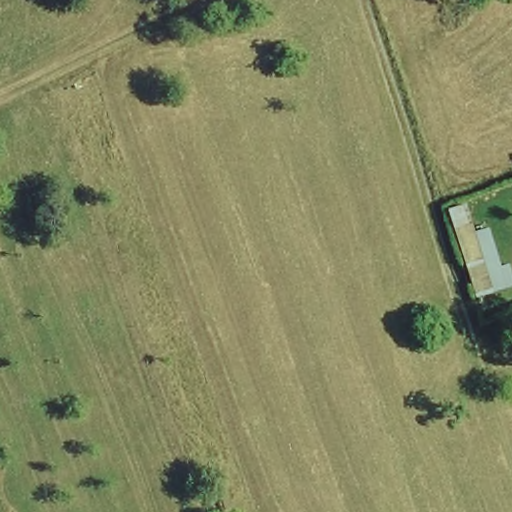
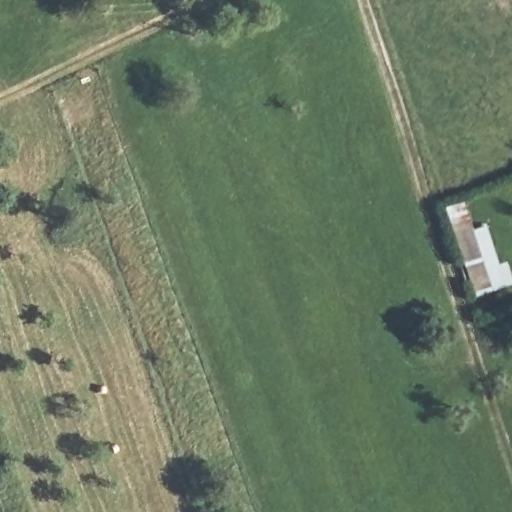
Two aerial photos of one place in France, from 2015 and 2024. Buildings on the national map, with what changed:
unchanged [(450,209),(470,204),(476,231),(492,227),(502,266),(512,264),(512,289),(480,300),(450,209)]

